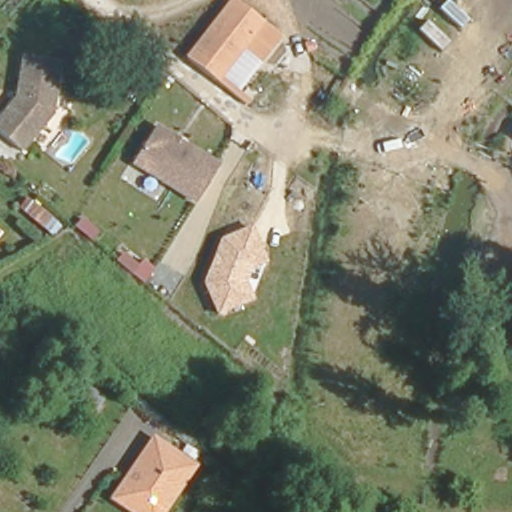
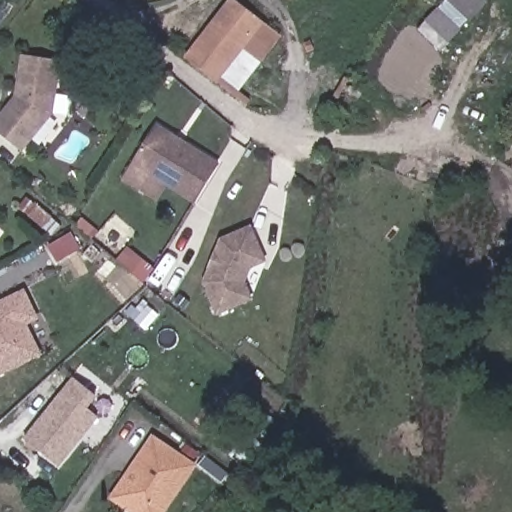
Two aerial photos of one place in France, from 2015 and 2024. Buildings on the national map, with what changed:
unchanged [(218,80),(189,57),(188,56),(230,0),(235,0),(262,20),(218,80)]
new [(418,30),(446,0),(485,0),(488,3),(441,52),(418,30)]
unchanged [(283,37),(240,91),(250,100),(246,105),(217,83),(218,80),(259,25),(262,20),(283,37)]
unchanged [(21,150),(0,134),(0,116),(16,96),(21,67),(22,55),(60,60),(55,94),(52,114),(21,150)]
unchanged [(219,165),(196,200),(153,173),(134,160),(135,158),(156,125),(219,165)]
unchanged [(52,236),(17,209),(25,199),(57,225),(52,236)]
unchanged [(250,268),(246,280),(253,300),(217,316),(202,281),(219,238),(252,223),(267,262),(250,268)]
new [(42,356),(0,376),(0,302),(26,290),(40,320),(28,325),(42,356)]
new [(56,466),(23,438),(72,379),(95,395),(85,406),(96,417),(56,466)]
unchanged [(127,512),(107,499),(151,435),(198,465),(167,512),(127,512)]

